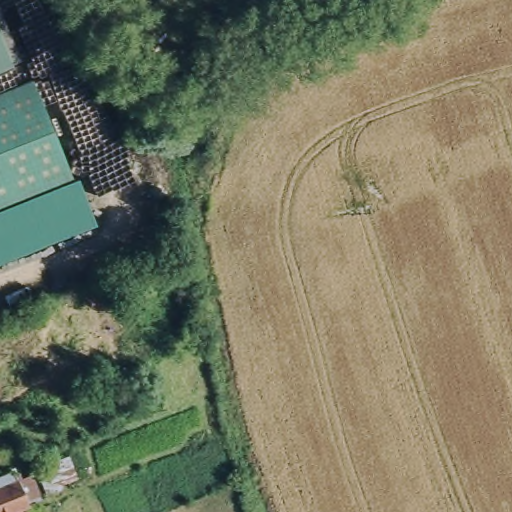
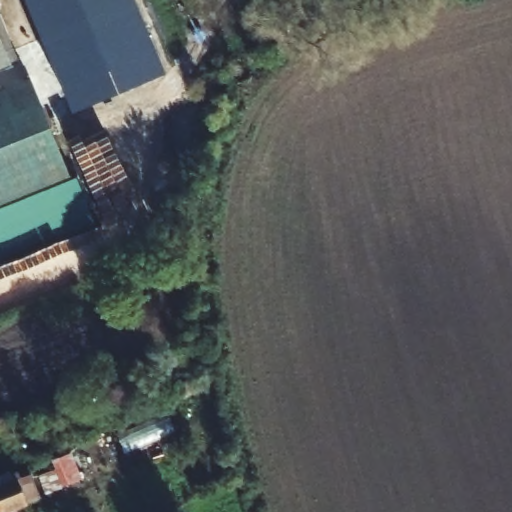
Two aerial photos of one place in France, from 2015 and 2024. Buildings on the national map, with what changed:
new [(168,73),(73,112),(26,0),(137,0),(168,73)]
unchanged [(13,64),(0,69),(0,32),(7,49),(13,64)]
unchanged [(0,203),(0,92),(31,79),(70,175),(0,203)]
unchanged [(0,264),(0,207),(77,176),(95,224),(0,264)]
unchanged [(0,512),(0,482),(11,477),(12,480),(18,478),(20,483),(30,480),(40,504),(19,512),(0,512)]

